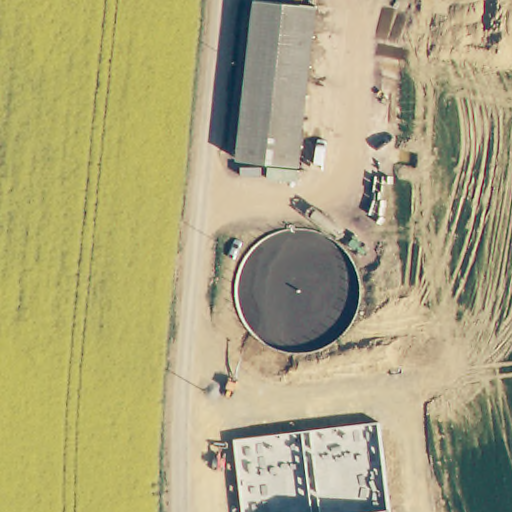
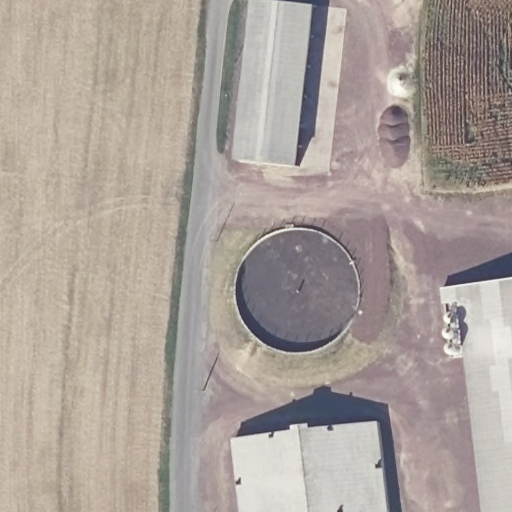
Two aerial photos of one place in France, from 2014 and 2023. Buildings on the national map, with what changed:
unchanged [(257,1),(315,7),(298,166),(241,160),(257,1)]
new [(512,280),(512,512),(483,512),(459,301),(442,303),(442,289),(512,280)]
unchanged [(377,423),(387,512),(243,512),(235,438),(377,423)]

